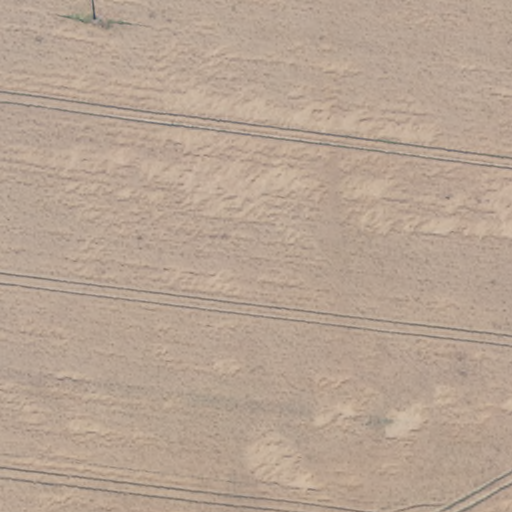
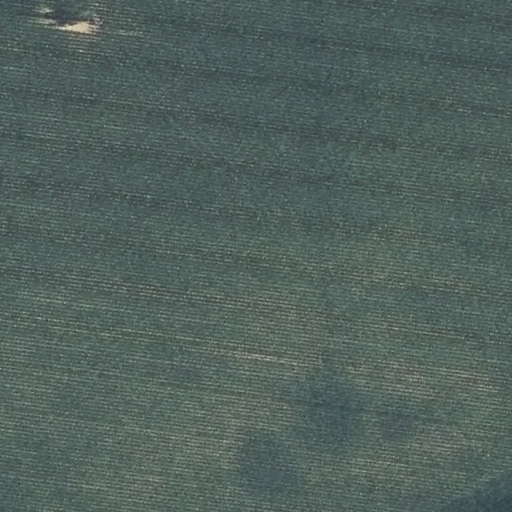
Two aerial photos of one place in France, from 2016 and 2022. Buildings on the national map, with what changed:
[]

